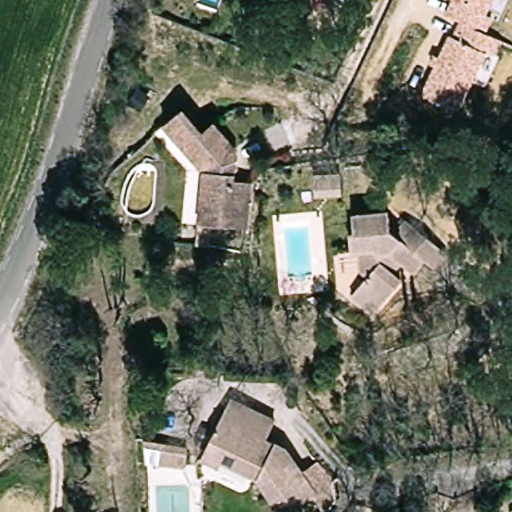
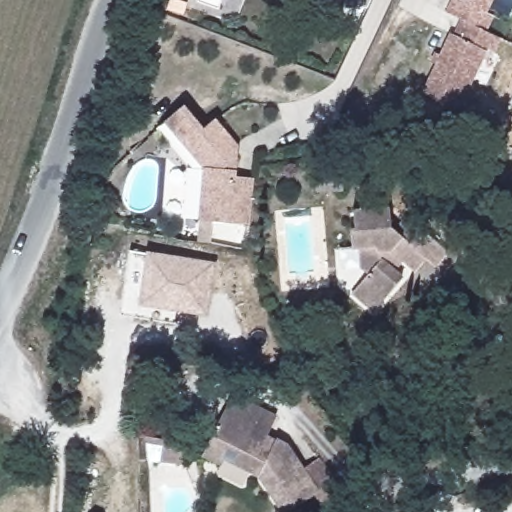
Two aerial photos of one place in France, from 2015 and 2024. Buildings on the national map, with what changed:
unchanged [(484,14),(493,19),(487,35),(500,40),(494,55),(484,52),(460,110),(422,95),(435,64),(431,61),(433,53),(438,55),(447,34),(451,34),(458,18),(446,12),(449,0),(491,0),(484,14)]
unchanged [(205,220),(208,170),(168,126),(188,107),(206,126),(218,116),(240,141),(236,176),(259,179),(253,225),(205,220)]
unchanged [(343,166),(345,189),(318,190),(318,168),(343,166)]
unchanged [(397,211),(397,239),(412,221),(452,255),(440,270),(432,263),(421,275),(404,261),(395,272),(408,282),(381,313),(358,295),(373,277),(370,275),(369,255),(356,243),(356,229),(361,229),(361,211),(397,211)]
new [(129,250),(145,252),(146,250),(216,261),(206,316),(176,311),(175,324),(120,315),(129,250)]
unchanged [(202,452),(208,441),(230,396),(265,413),(276,418),(270,432),(290,445),(314,487),(279,505),(258,472),(221,454),(217,460),(202,452)]

